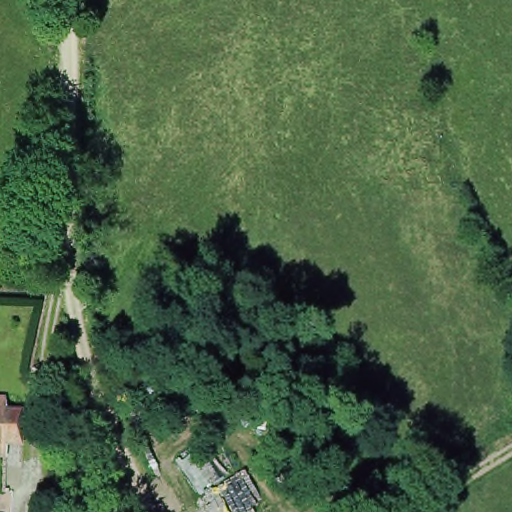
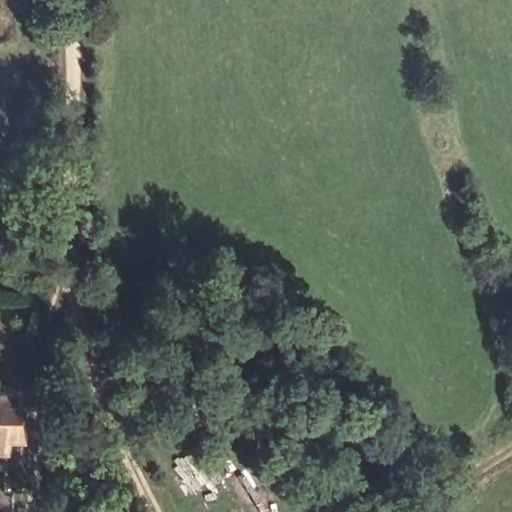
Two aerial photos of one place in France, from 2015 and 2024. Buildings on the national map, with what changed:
unchanged [(0,451),(0,395),(7,395),(7,408),(23,408),(23,439),(5,439),(5,451),(0,451)]

